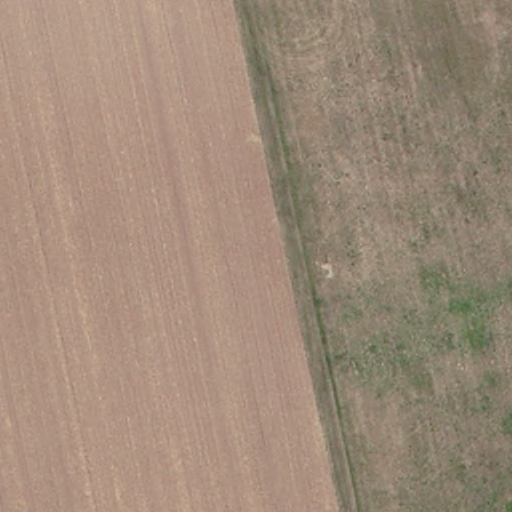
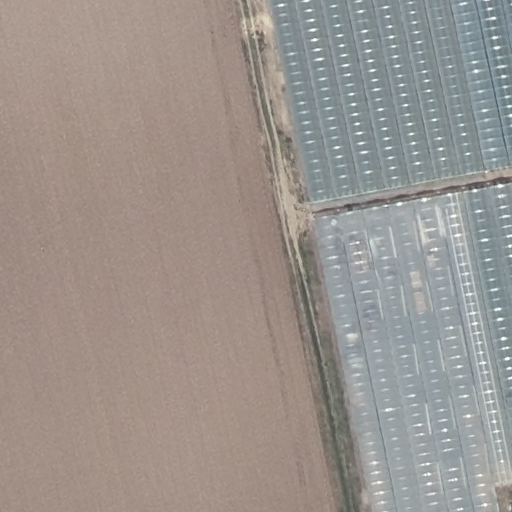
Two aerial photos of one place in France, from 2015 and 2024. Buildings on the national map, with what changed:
new [(512,167),(312,202),(271,0),(512,0),(512,167)]
new [(512,184),(512,479),(494,482),(501,512),(374,512),(314,219),(512,184)]

